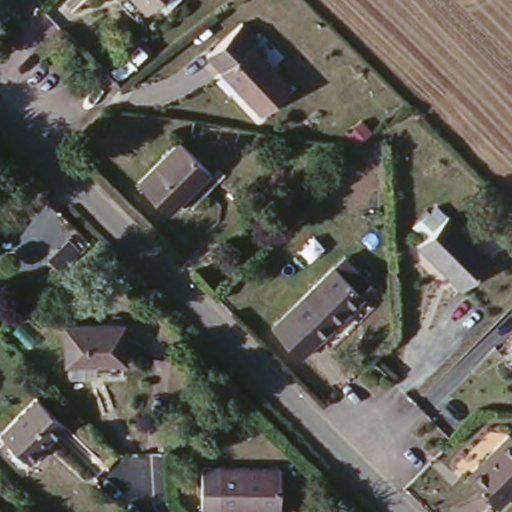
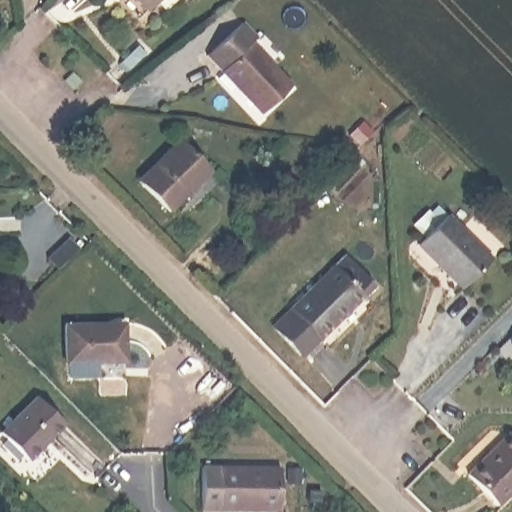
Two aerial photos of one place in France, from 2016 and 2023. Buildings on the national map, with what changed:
unchanged [(159,12),(151,5),(144,11),(133,0),(172,0),(159,12)]
unchanged [(250,41),(245,47),(288,89),(261,116),(204,62),(238,28),(250,41)]
unchanged [(210,174),(184,202),(173,192),(159,206),(134,180),(175,138),(210,174)]
unchanged [(488,262),(457,292),(416,250),(445,220),(488,262)]
unchanged [(305,362),(278,334),(339,274),(348,264),(366,281),(375,290),(305,362)]
unchanged [(63,327),(122,326),(122,363),(91,363),(92,376),(90,378),(60,377),(63,346),(63,327)]
unchanged [(45,394),(69,423),(31,455),(6,425),(45,394)]
unchanged [(512,442),(512,490),(494,508),(464,478),(507,436),(512,442)]
unchanged [(291,468),(291,481),(278,481),(278,505),(192,502),(192,466),(291,468)]

